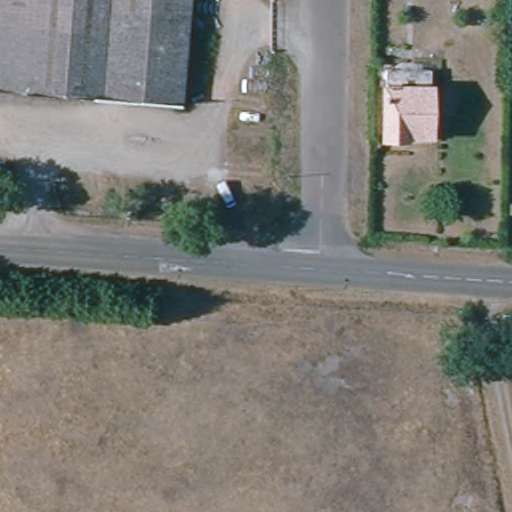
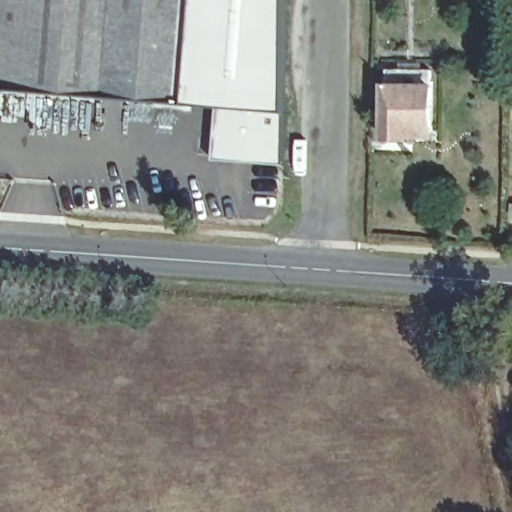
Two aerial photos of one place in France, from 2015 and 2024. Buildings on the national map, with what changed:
unchanged [(0,89),(0,0),(192,0),(187,99),(0,89)]
new [(283,162),(214,157),(218,105),(186,104),(187,99),(192,0),(284,0),(284,107),(283,162)]
unchanged [(432,79),(430,135),(407,133),(406,144),(384,142),(386,89),(392,90),(393,76),(432,79)]

